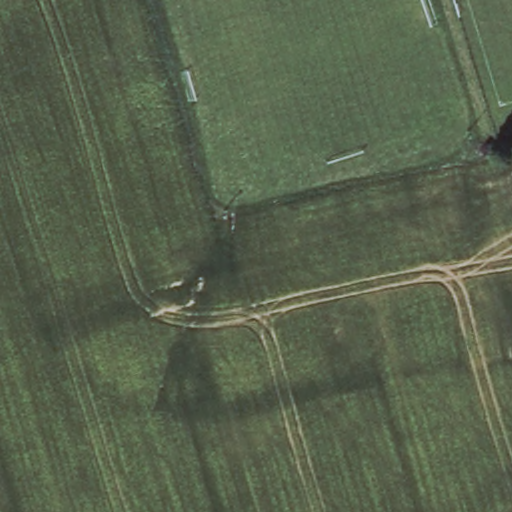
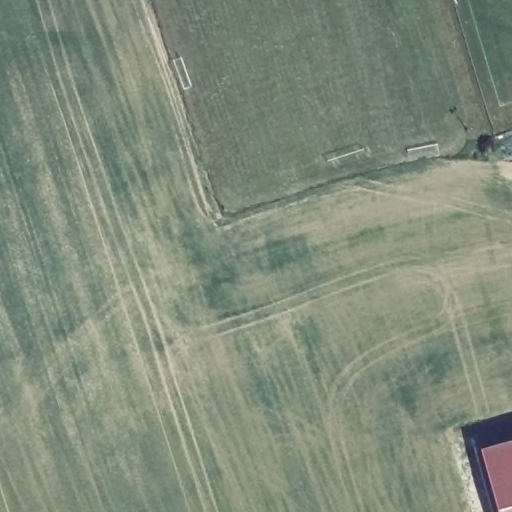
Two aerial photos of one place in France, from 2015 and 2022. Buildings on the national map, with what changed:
new [(494,512),(478,452),(512,442),(512,512),(494,512)]

